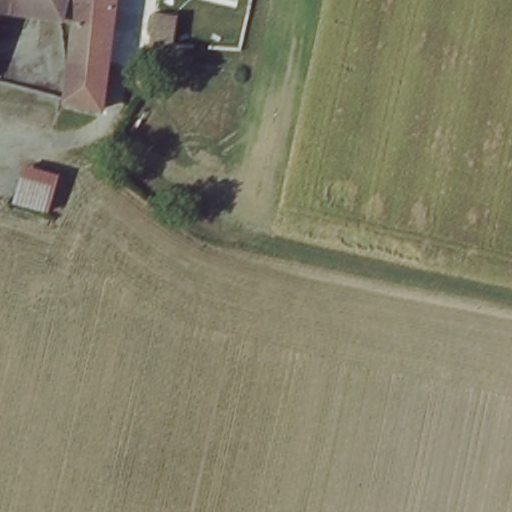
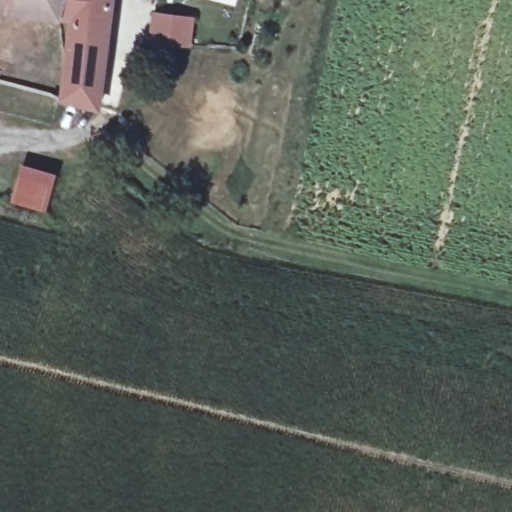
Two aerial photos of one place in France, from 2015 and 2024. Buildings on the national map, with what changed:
unchanged [(64,0),(62,12),(62,13),(0,2),(0,0),(64,0)]
unchanged [(73,14),(62,13),(62,12),(64,0),(110,0),(101,103),(65,95),(73,14)]
unchanged [(150,10),(168,11),(167,43),(148,42),(150,10)]
unchanged [(12,205),(22,167),(57,176),(48,215),(12,205)]

